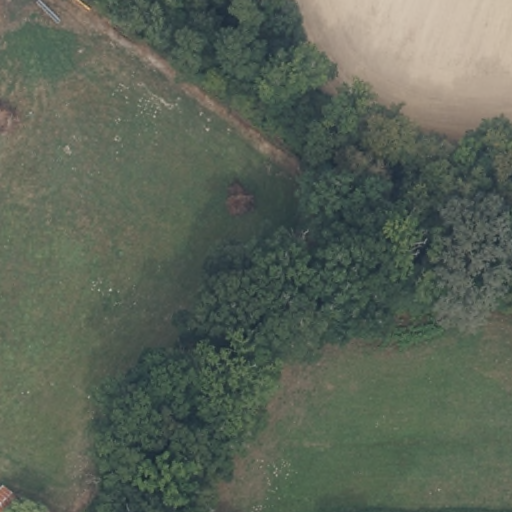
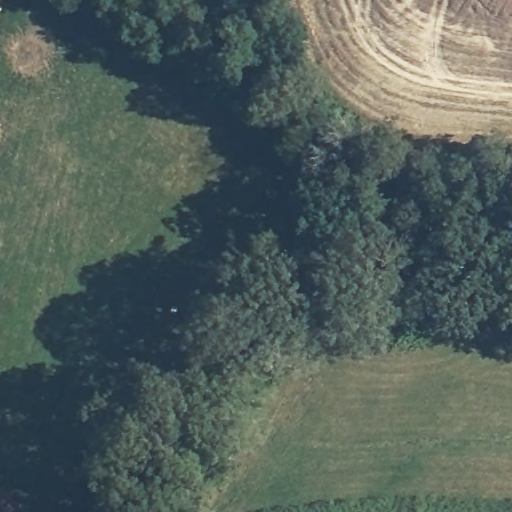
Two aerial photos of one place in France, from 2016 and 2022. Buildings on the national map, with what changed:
unchanged [(0,493),(4,489),(20,506),(16,510),(13,512),(0,512),(0,493)]

